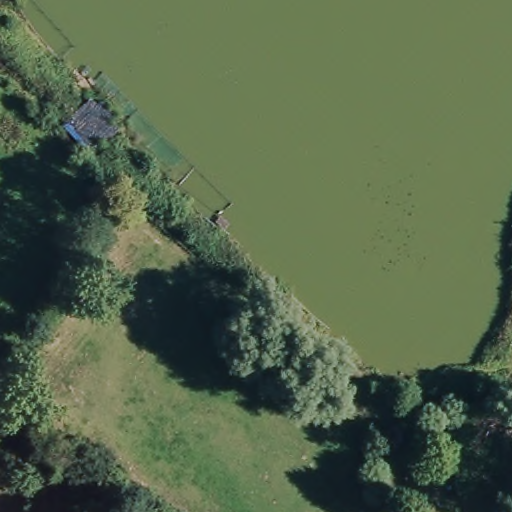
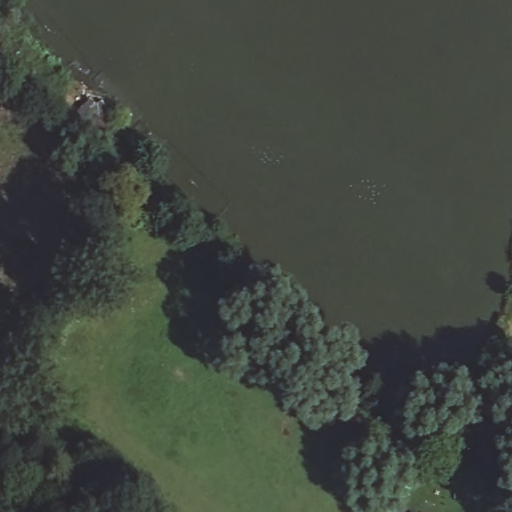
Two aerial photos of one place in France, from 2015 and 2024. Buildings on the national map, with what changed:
unchanged [(61,127),(79,112),(104,141),(83,156),(61,127)]

